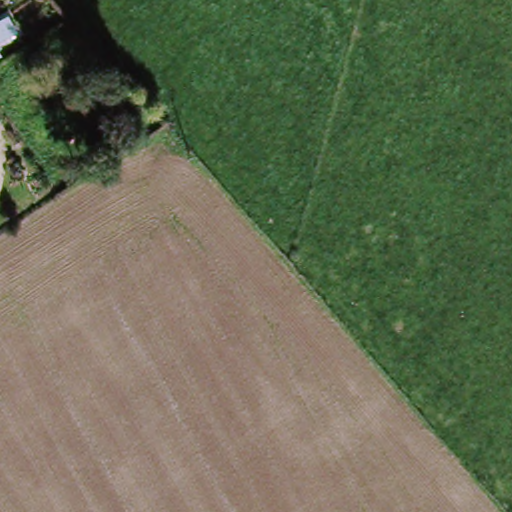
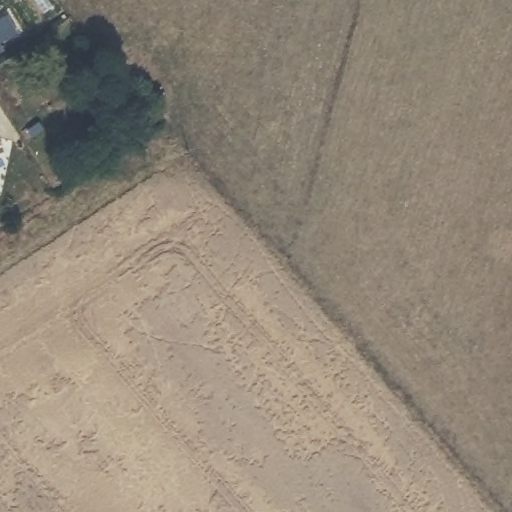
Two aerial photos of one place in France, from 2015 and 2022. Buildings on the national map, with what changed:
unchanged [(10,11),(20,31),(0,42),(0,16),(10,11)]
unchanged [(3,55),(0,56),(0,51),(3,55)]

